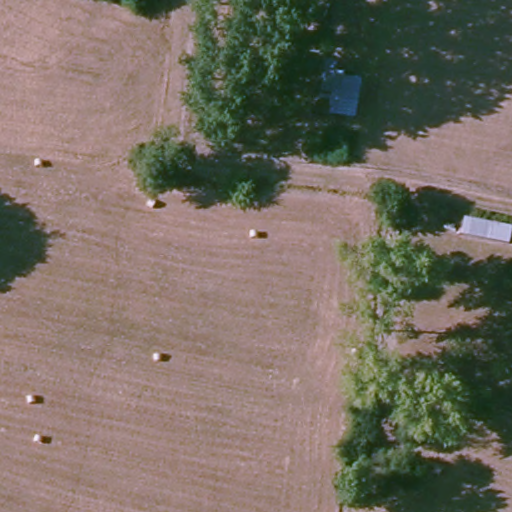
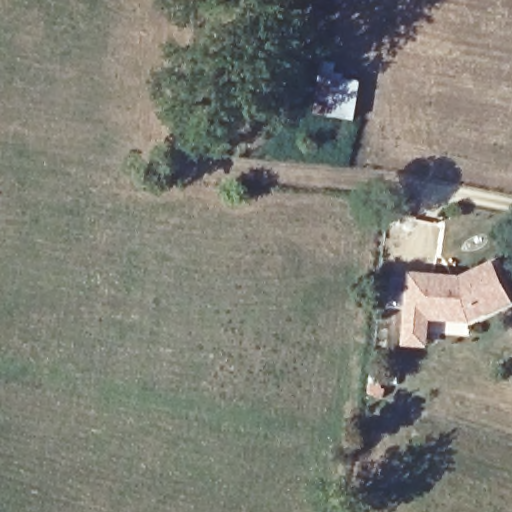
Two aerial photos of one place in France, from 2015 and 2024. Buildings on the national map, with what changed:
unchanged [(318,112),(327,60),(338,61),(339,70),(366,76),(362,115),(318,112)]
new [(463,276),(495,260),(512,296),(512,305),(470,323),(432,321),(430,348),(404,346),(410,272),(463,276)]

